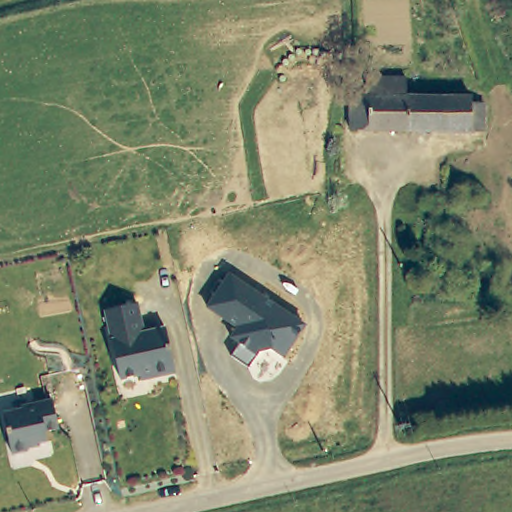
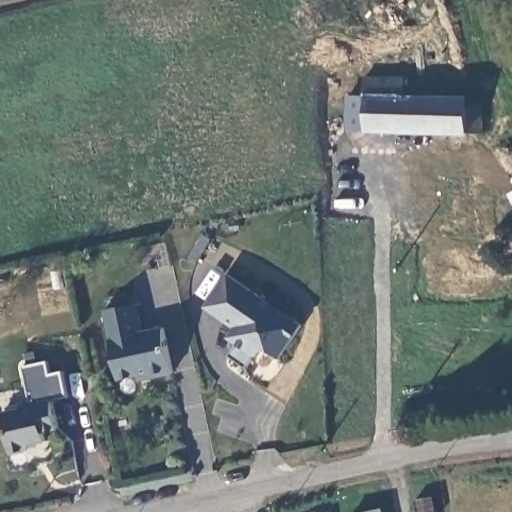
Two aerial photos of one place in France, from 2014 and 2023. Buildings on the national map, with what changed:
unchanged [(369,92),(369,78),(408,77),(409,95),(471,95),(471,110),(487,110),(492,132),(357,128),(357,92),(369,92)]
unchanged [(282,357),(270,349),(256,352),(247,367),(232,355),(240,345),(229,337),(235,327),(206,307),(229,273),(304,324),(282,357)]
unchanged [(105,313),(137,307),(144,336),(166,332),(175,376),(140,383),(139,378),(119,382),(105,313)]
new [(34,411),(25,367),(47,362),(50,375),(62,372),(67,397),(50,400),(50,408),(34,411)]
unchanged [(23,416),(22,413),(55,407),(60,436),(46,439),(49,448),(34,452),(30,458),(14,461),(5,420),(23,416)]
new [(385,512),(365,512),(384,507),(385,512)]

